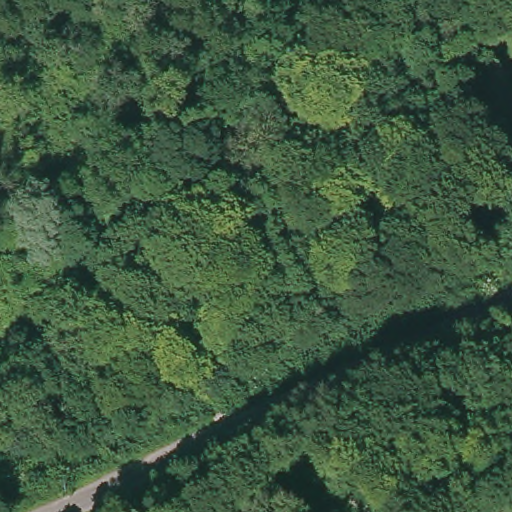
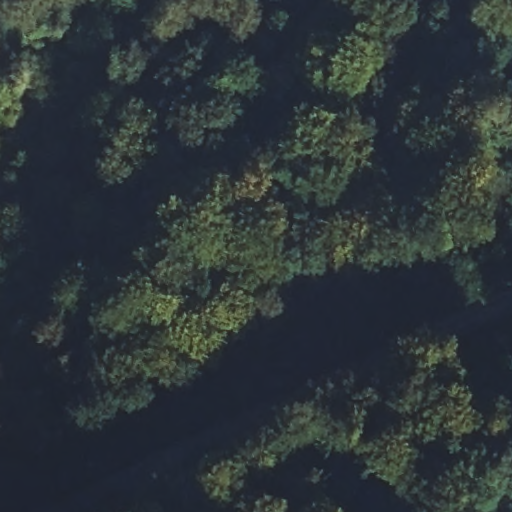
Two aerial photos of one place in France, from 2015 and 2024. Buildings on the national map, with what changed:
unchanged [(482,230),(488,245),(461,259),(454,243),(482,230)]

